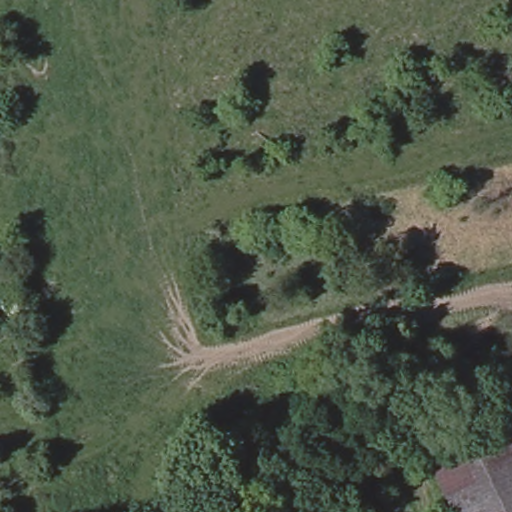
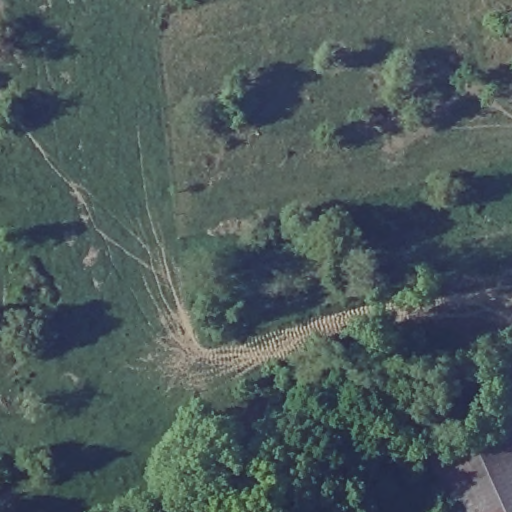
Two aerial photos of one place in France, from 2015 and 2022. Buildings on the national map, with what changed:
unchanged [(435,462),(511,423),(512,423),(512,512),(458,512),(435,462)]

